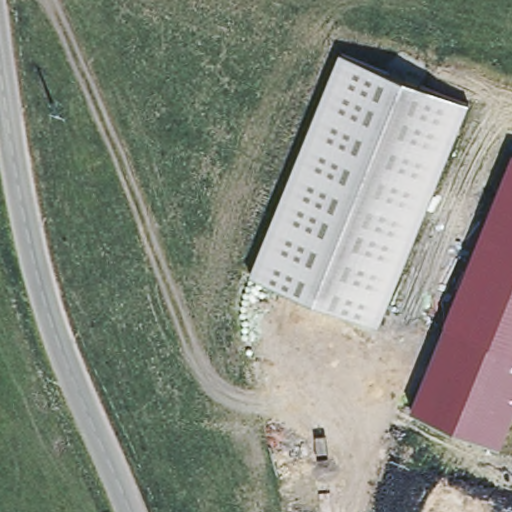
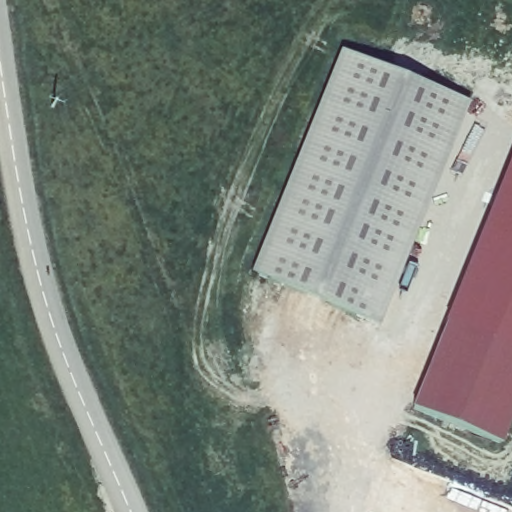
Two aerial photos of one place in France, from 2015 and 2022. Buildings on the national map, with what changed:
unchanged [(344,52),(468,104),(378,324),(255,272),(344,52)]
unchanged [(512,159),(512,422),(503,445),(413,408),(512,159)]

